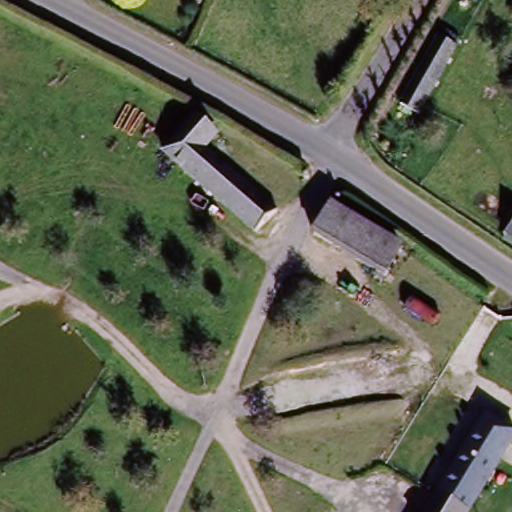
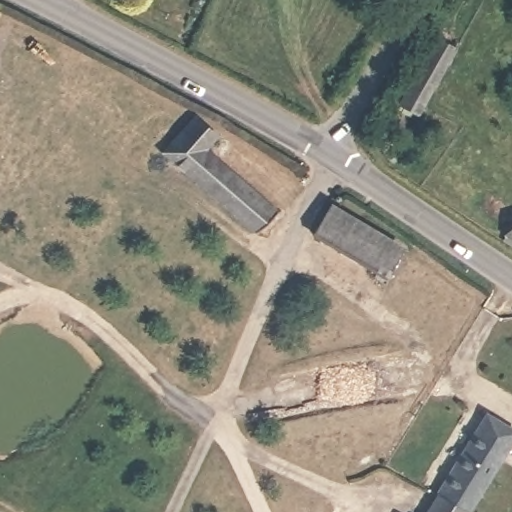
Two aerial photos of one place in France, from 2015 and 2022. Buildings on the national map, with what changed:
unchanged [(462,49),(424,114),(405,102),(443,37),(462,49)]
unchanged [(255,239),(167,157),(198,122),(220,143),(207,158),(272,217),(255,239)]
unchanged [(386,277),(317,238),(333,212),(401,252),(386,277)]
unchanged [(512,243),(506,240),(512,230),(512,243)]
unchanged [(484,411),(512,427),(512,430),(464,512),(424,512),(484,411)]

